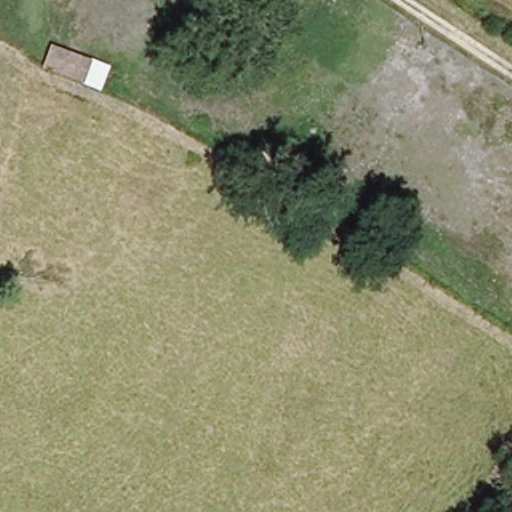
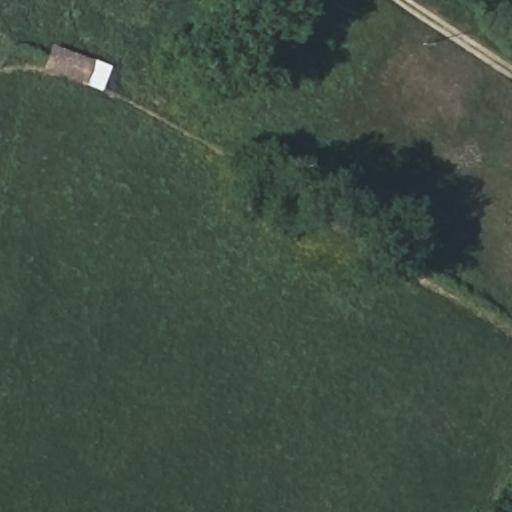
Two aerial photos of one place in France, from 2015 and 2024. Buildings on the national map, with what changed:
unchanged [(101,95),(38,71),(49,42),(111,67),(101,95)]

